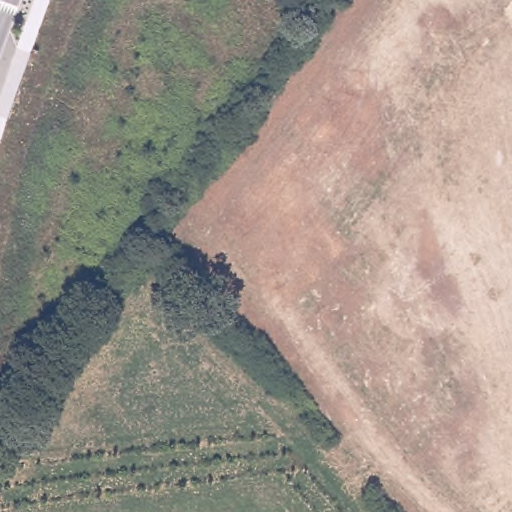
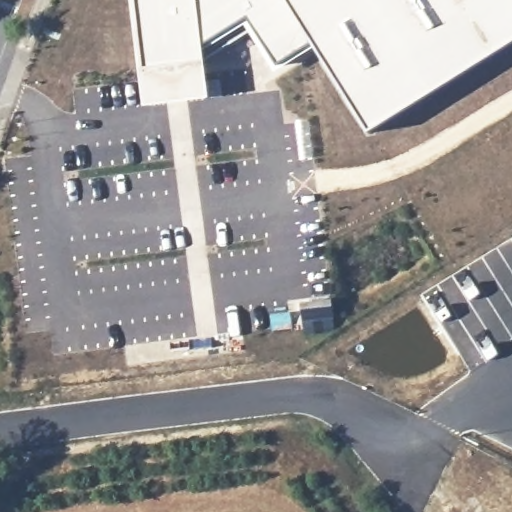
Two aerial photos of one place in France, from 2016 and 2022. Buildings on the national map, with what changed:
new [(131,0),(284,0),(312,45),(276,67),(247,19),(200,48),(209,99),(143,107),(131,0)]
new [(312,45),(284,0),(512,0),(512,43),(368,134),(312,45)]

